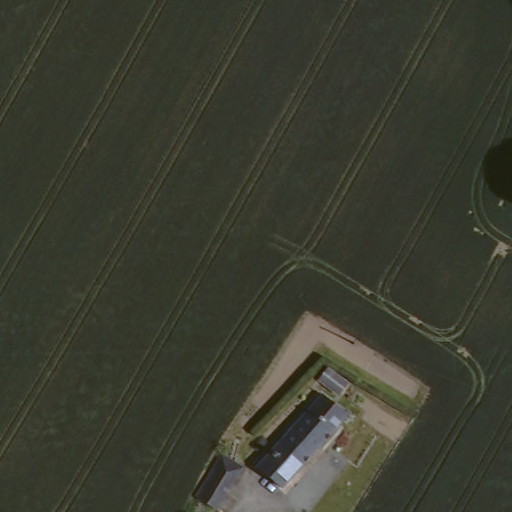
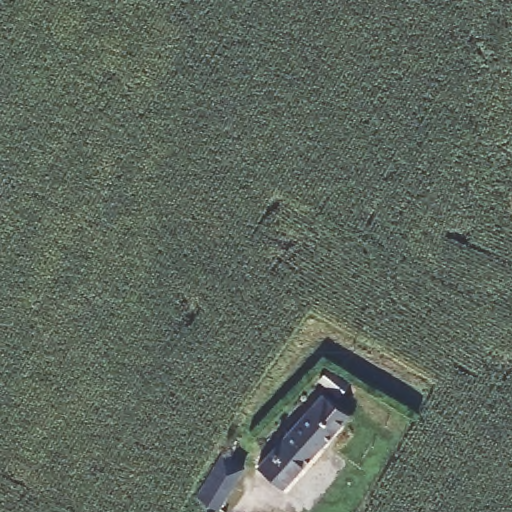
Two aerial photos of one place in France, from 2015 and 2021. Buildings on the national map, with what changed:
unchanged [(320,391),(344,412),(280,484),(255,463),(320,391)]
unchanged [(228,449),(249,460),(248,464),(224,506),(215,502),(203,496),(228,449)]

